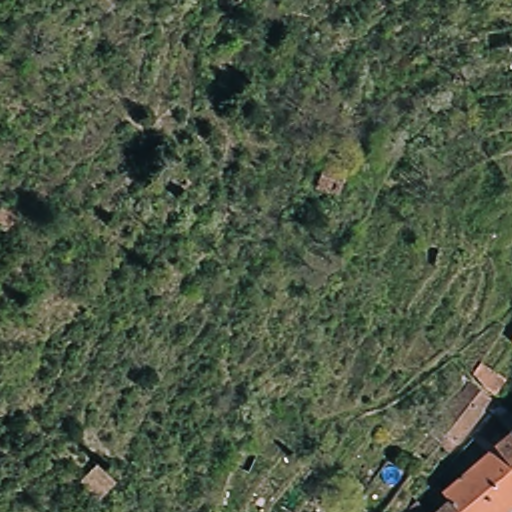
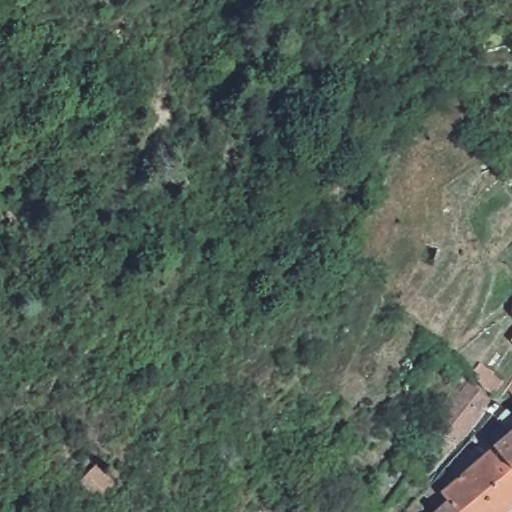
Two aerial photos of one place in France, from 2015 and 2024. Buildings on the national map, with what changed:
unchanged [(191,178),(173,192),(158,170),(176,159),(191,178)]
unchanged [(339,172),(331,192),(311,185),(318,164),(339,172)]
unchanged [(0,223),(0,202),(6,197),(18,210),(2,225),(0,223)]
unchanged [(509,372),(492,387),(473,363),(490,350),(509,372)]
unchanged [(488,392),(441,451),(418,432),(464,372),(488,392)]
unchanged [(512,378),(512,380),(511,379),(512,378)]
unchanged [(489,411),(492,407),(498,402),(512,419),(512,502),(500,512),(498,512),(468,476),(507,442),(510,437),(492,417),(489,411)]
unchanged [(98,467),(113,486),(96,503),(80,487),(98,467)]
unchanged [(450,505),(443,496),(468,476),(498,512),(441,512),(450,505)]

